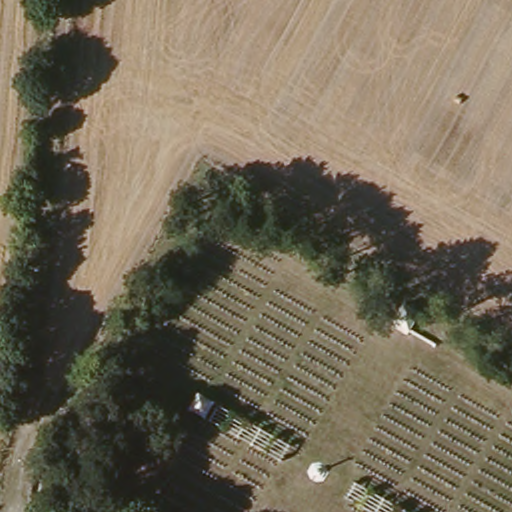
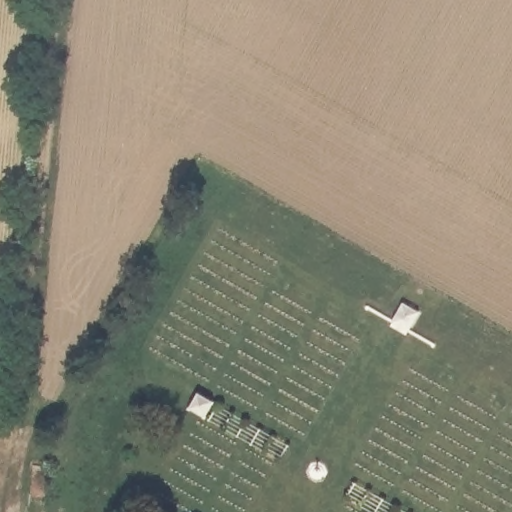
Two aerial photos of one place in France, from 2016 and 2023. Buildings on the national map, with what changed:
unchanged [(435,305),(423,325),(406,316),(417,296),(435,305)]
unchanged [(227,391),(217,410),(199,400),(211,382),(227,391)]

